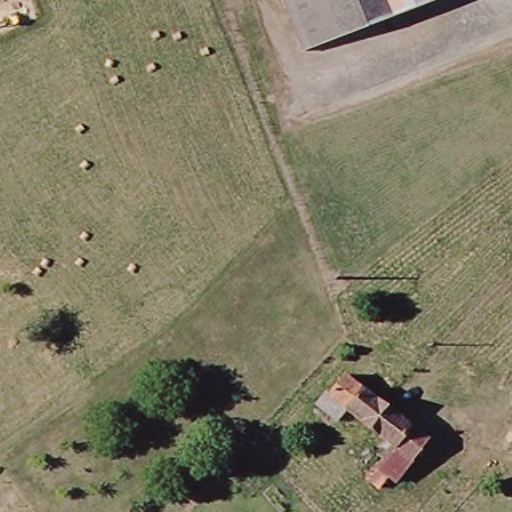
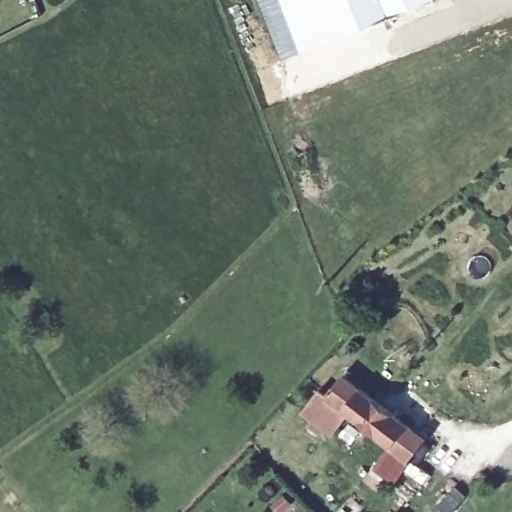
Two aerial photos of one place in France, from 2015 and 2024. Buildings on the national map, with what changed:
unchanged [(279,0),(433,0),(300,52),(279,0)]
unchanged [(392,442),(371,426),(347,408),(337,421),(317,406),(327,394),(328,395),(343,375),(362,388),(386,406),(427,438),(412,458),(396,481),(389,476),(381,487),(367,477),(376,465),(392,442)]

